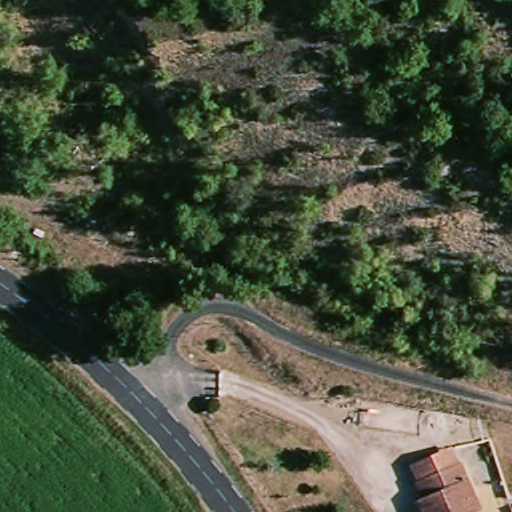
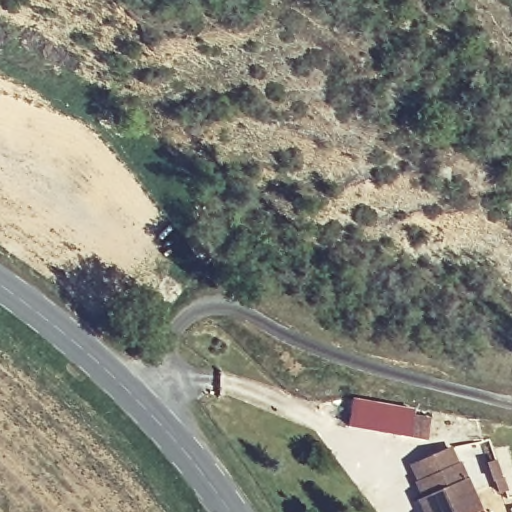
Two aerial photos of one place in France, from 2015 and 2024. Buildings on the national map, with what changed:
new [(347,428),(353,398),(414,409),(413,414),(431,417),(426,444),(347,428)]
unchanged [(426,493),(419,477),(454,461),(462,477),(478,512),(435,512),(426,493)]

